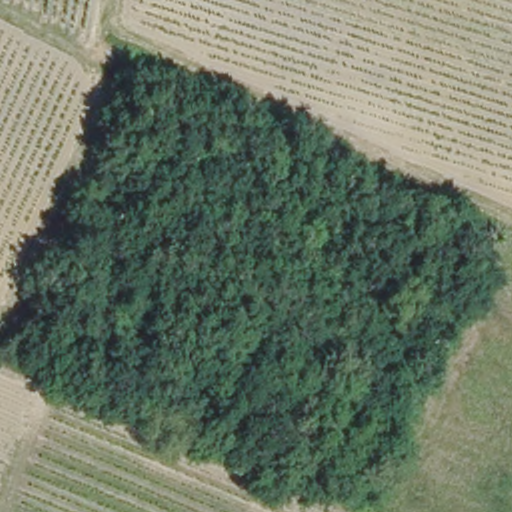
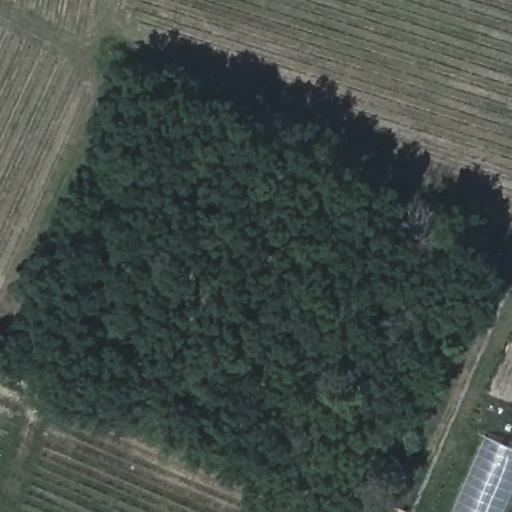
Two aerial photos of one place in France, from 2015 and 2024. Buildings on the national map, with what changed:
new [(483,436),(512,447),(512,491),(504,512),(453,512),(483,436)]

